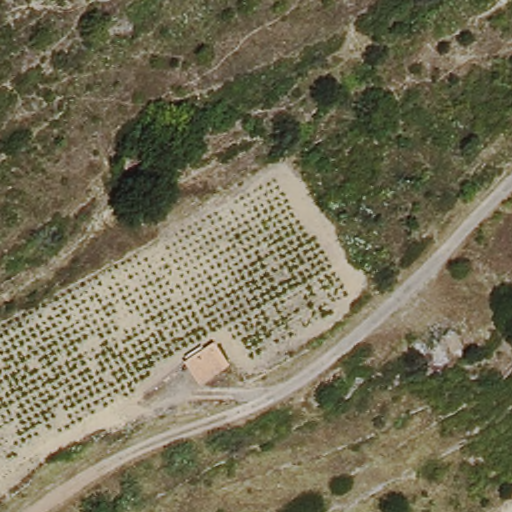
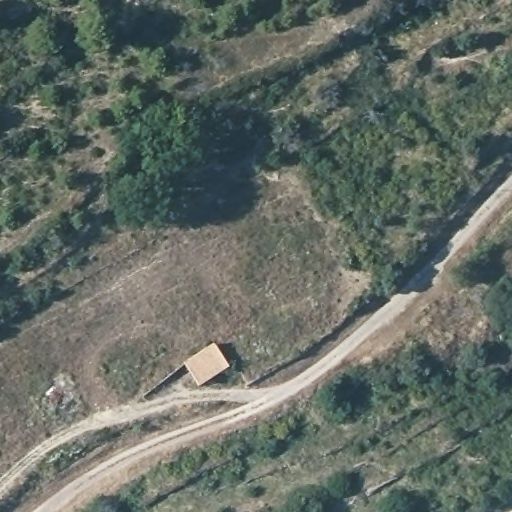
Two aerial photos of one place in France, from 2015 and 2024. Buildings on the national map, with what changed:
unchanged [(183,363),(216,346),(228,369),(196,386),(183,363)]

